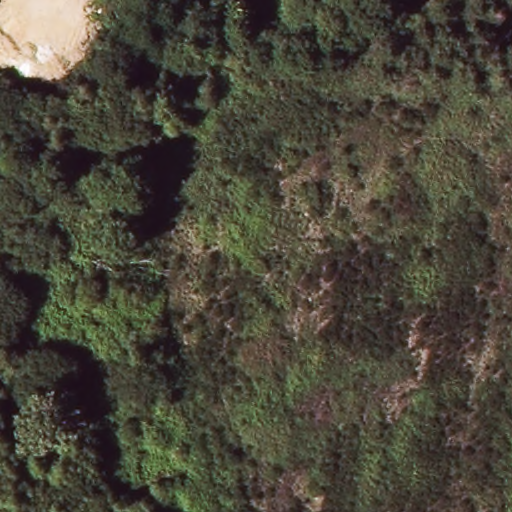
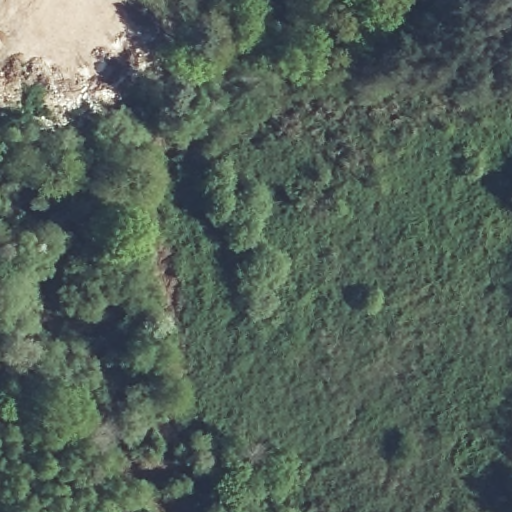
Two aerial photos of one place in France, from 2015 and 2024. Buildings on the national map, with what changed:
[]

